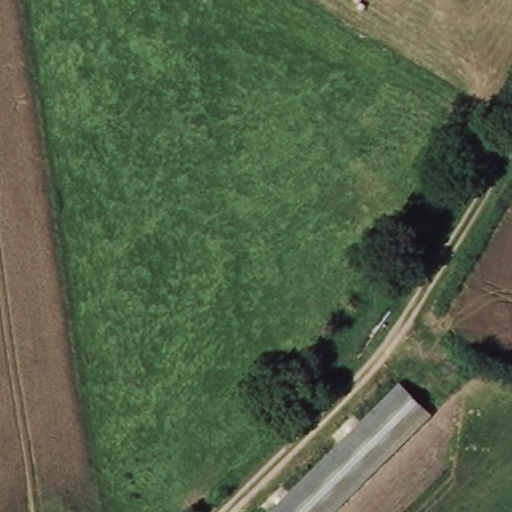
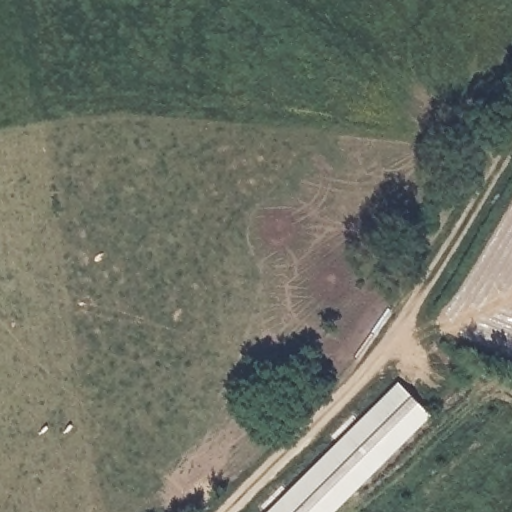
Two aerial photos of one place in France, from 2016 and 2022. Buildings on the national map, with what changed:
unchanged [(434,415),(334,512),(267,512),(401,382),(434,415)]

